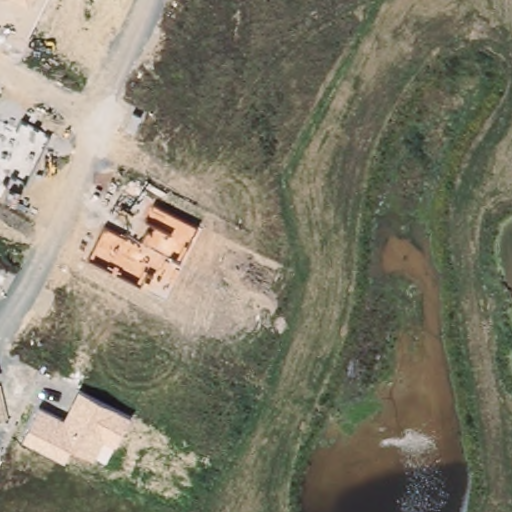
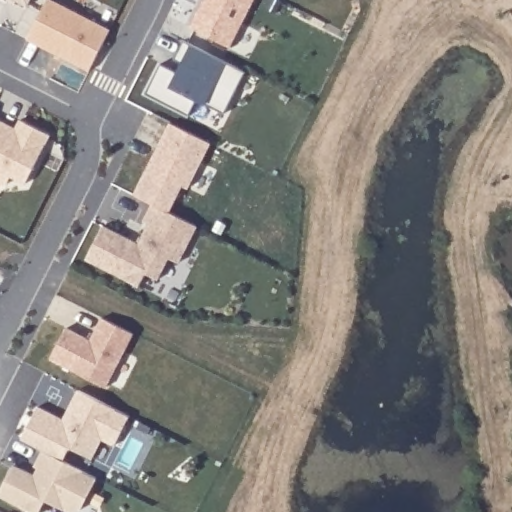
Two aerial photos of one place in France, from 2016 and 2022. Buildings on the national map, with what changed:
unchanged [(20,0),(30,0),(28,4),(20,0)]
new [(62,0),(113,26),(92,67),(30,36),(48,0),(62,0)]
new [(255,0),(234,41),(194,21),(205,0),(255,0)]
new [(165,59),(187,70),(192,61),(178,55),(187,36),(250,67),(229,109),(201,95),(193,111),(150,89),(165,59)]
new [(15,127),(19,118),(52,135),(29,184),(11,176),(7,185),(0,181),(0,120),(15,127)]
new [(170,121),(212,143),(190,187),(182,185),(170,211),(154,203),(135,192),(170,121)]
unchanged [(105,226),(140,244),(152,224),(145,221),(154,203),(197,225),(180,263),(169,257),(157,278),(146,273),(140,285),(89,258),(105,226)]
new [(70,326),(95,338),(106,316),(137,331),(110,385),(55,357),(70,326)]
unchanged [(39,404),(65,417),(79,388),(130,415),(117,444),(101,437),(92,457),(70,447),(63,460),(21,437),(39,404)]
new [(14,463),(31,473),(43,449),(63,460),(97,477),(81,509),(70,512),(46,500),(39,512),(35,512),(0,495),(0,491),(14,463)]

